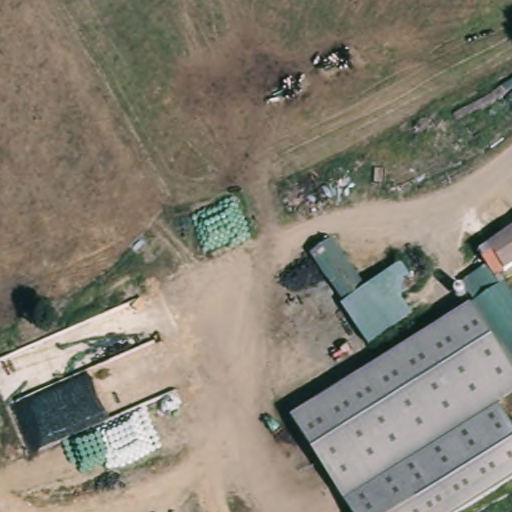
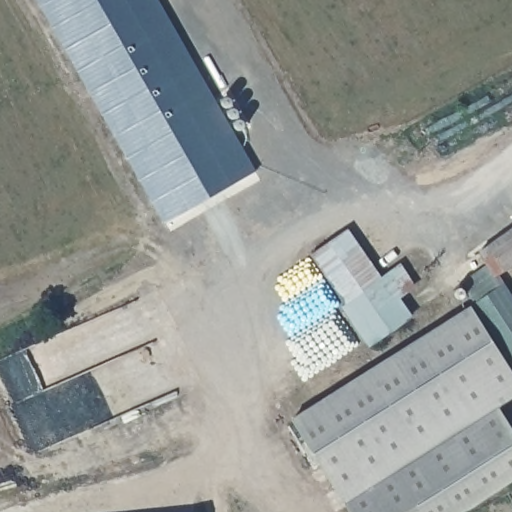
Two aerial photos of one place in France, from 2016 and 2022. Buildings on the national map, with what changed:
new [(39,0),(158,0),(255,170),(166,222),(39,0)]
unchanged [(505,278),(483,249),(512,229),(512,273),(505,278)]
unchanged [(307,257),(332,240),(367,287),(400,265),(431,305),(367,350),(307,257)]
unchanged [(466,307),(472,305),(462,285),(487,269),(512,305),(512,383),(466,307)]
unchanged [(466,307),(512,383),(512,398),(497,408),(512,432),(512,484),(467,512),(350,512),(292,418),(466,307)]

